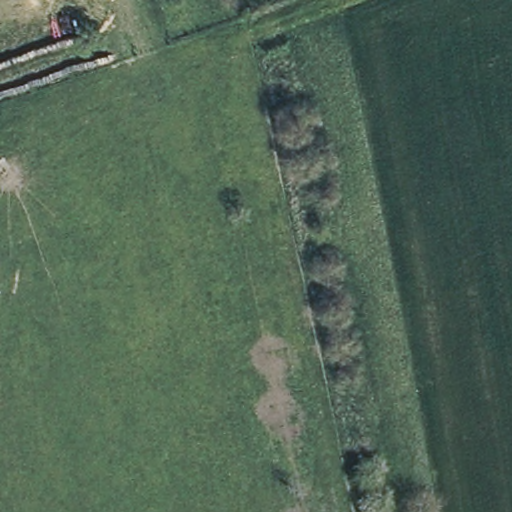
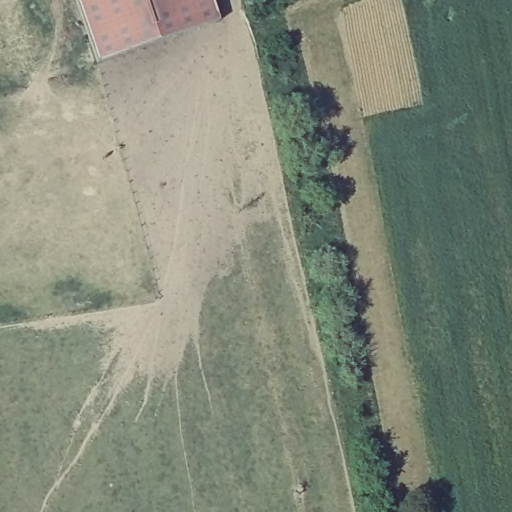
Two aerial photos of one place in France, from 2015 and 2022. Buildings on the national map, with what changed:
new [(221,19),(99,62),(77,0),(214,0),(221,19)]

